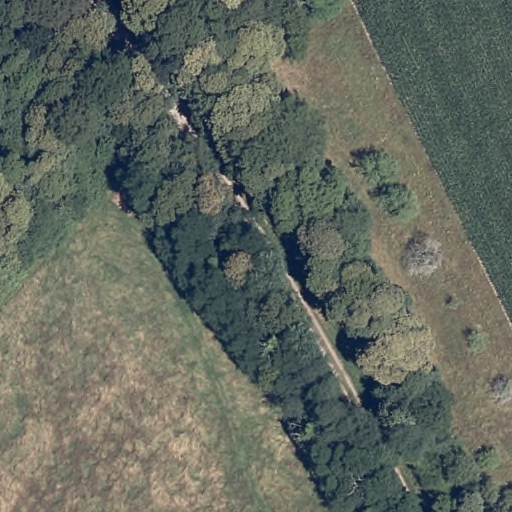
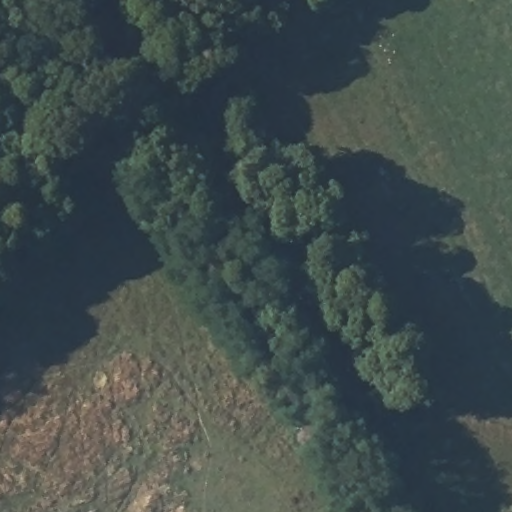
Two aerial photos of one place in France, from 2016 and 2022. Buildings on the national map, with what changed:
[]

